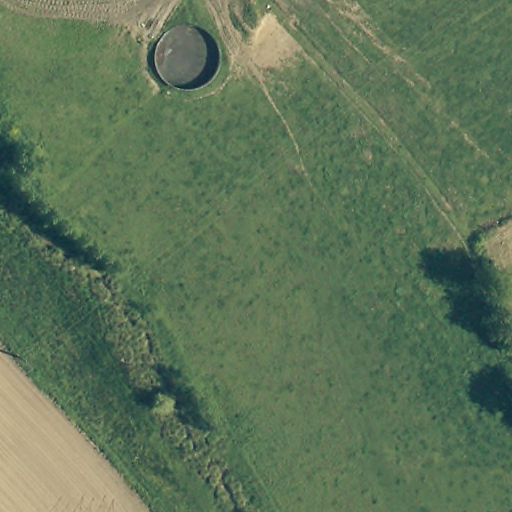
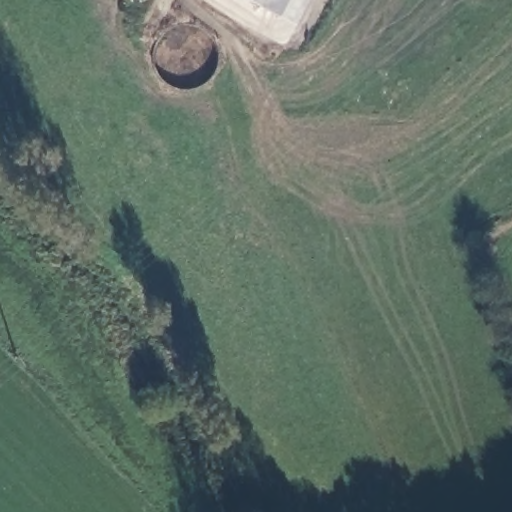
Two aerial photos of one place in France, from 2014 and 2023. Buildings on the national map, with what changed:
new [(249,0),(275,0),(269,11),(249,0)]
new [(302,0),(290,22),(269,11),(275,0),(302,0)]

